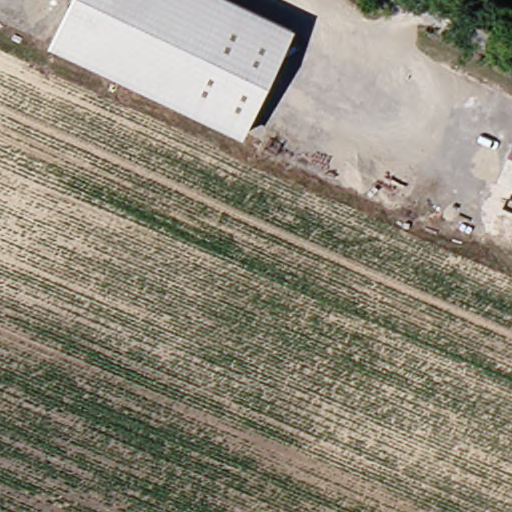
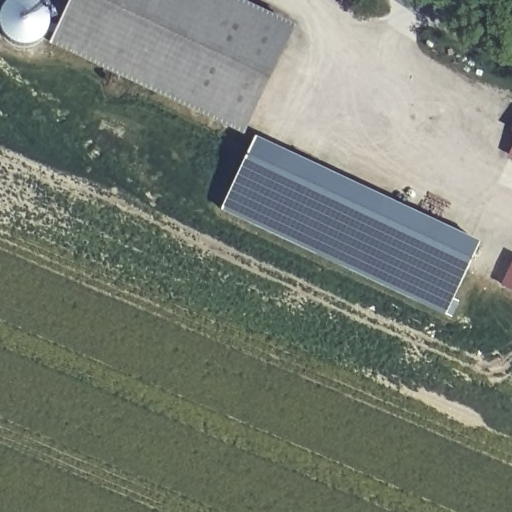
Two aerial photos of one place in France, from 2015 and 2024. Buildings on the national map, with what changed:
new [(49,25),(48,32),(44,39),(38,43),(31,46),(24,47),(17,46),(10,44),(5,39),(1,32),(0,29),(0,14),(0,11),(4,5),(10,0),(11,0),(38,0),(43,5),(48,11),(49,18),(49,25)]
unchanged [(294,28),(247,135),(53,45),(73,0),(234,0),(294,28)]
new [(258,134),(481,238),(447,311),(224,207),(258,134)]
new [(507,156),(512,146),(512,158),(507,156)]
new [(502,286),(512,265),(512,291),(502,286)]

